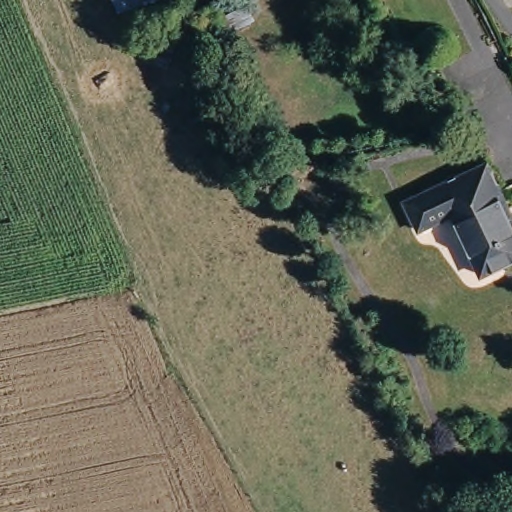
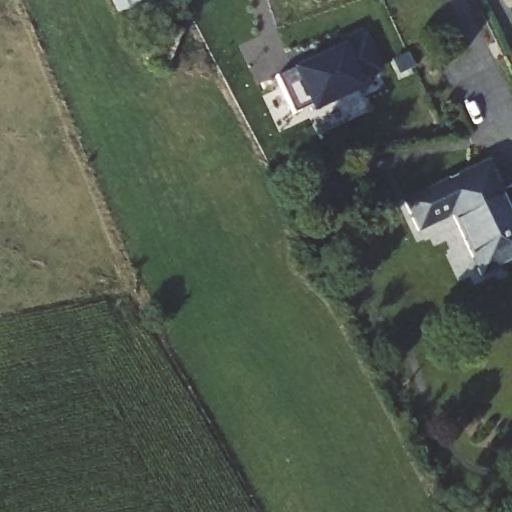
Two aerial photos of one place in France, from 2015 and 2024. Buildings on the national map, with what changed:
new [(112,0),(142,0),(117,11),(112,0)]
demolished [(211,0),(215,0),(232,30),(222,36),(203,5),(211,0)]
unchanged [(145,54),(161,22),(182,32),(167,65),(145,54)]
new [(302,70),(300,65),(366,34),(385,73),(363,82),(363,91),(311,116),(307,107),(294,114),(277,77),(290,71),(292,74),(302,70)]
unchanged [(512,232),(512,263),(481,277),(451,217),(420,232),(407,204),(480,168),(512,232)]

